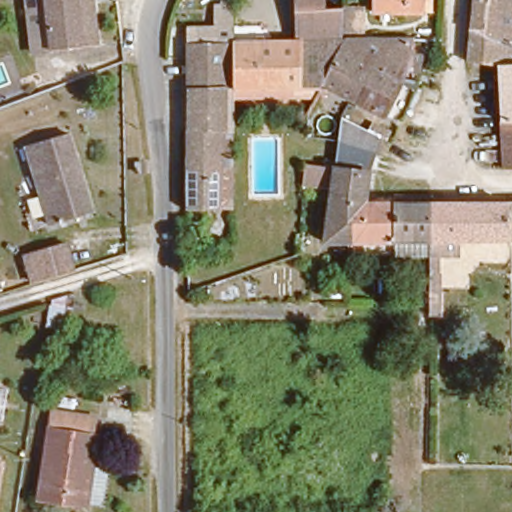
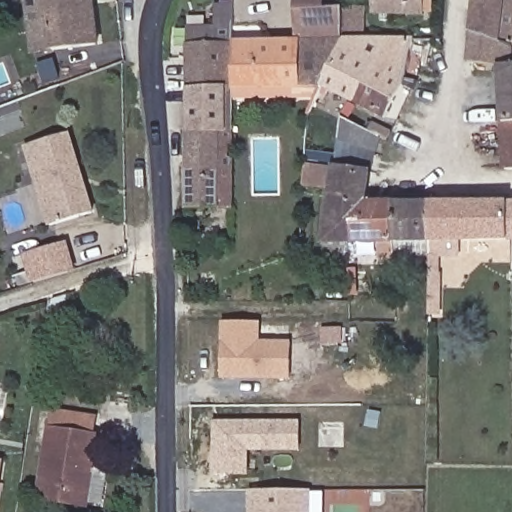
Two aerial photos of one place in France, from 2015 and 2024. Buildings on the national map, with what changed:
unchanged [(39,0),(98,0),(101,21),(103,40),(59,45),(45,46),(40,10),(39,0)]
unchanged [(185,40),(208,37),(209,0),(228,0),(228,39),(229,84),(184,80),(185,40)]
unchanged [(396,85),(334,54),(318,85),(229,84),(228,39),(290,40),(291,0),(322,0),(322,7),(341,9),(362,10),(361,39),(407,40),(396,85)]
unchanged [(424,14),(415,14),(366,14),(366,0),(424,0),(424,14)]
unchanged [(498,30),(508,30),(508,48),(466,31),(468,0),(500,0),(498,30)]
unchanged [(512,31),(508,30),(498,30),(500,0),(512,0),(512,31)]
unchanged [(508,30),(512,31),(512,53),(508,52),(509,65),(512,65),(512,164),(503,164),(498,64),(462,60),(466,31),(508,48),(508,30)]
unchanged [(508,52),(512,53),(512,65),(509,65),(508,52)]
unchanged [(380,116),(318,85),(334,54),(396,85),(380,116)]
unchanged [(184,80),(229,84),(229,96),(227,122),(184,122),(184,80)]
unchanged [(318,85),(312,97),(229,96),(229,84),(318,85)]
unchanged [(303,161),(331,166),(336,119),(370,135),(361,201),(425,202),(425,239),(323,239),(328,185),(302,180),(303,161)]
unchanged [(183,203),(184,122),(227,122),(227,202),(183,203)]
unchanged [(49,225),(23,145),(68,131),(93,210),(49,225)]
unchanged [(504,200),(512,201),(512,238),(465,239),(462,202),(504,200)]
unchanged [(462,202),(465,239),(454,239),(453,245),(453,254),(433,254),(423,254),(423,246),(425,239),(425,202),(462,202)]
unchanged [(33,280),(26,250),(65,239),(72,270),(33,280)]
new [(284,377),(216,377),(216,321),(252,321),(252,341),(284,341),(284,377)]
unchanged [(101,507),(85,503),(36,495),(52,409),(93,415),(91,433),(96,433),(91,462),(109,465),(101,507)]
new [(294,449),(242,450),(242,474),(209,474),(209,421),(293,420),(294,449)]
new [(246,512),(246,488),(304,488),(304,512),(246,512)]

